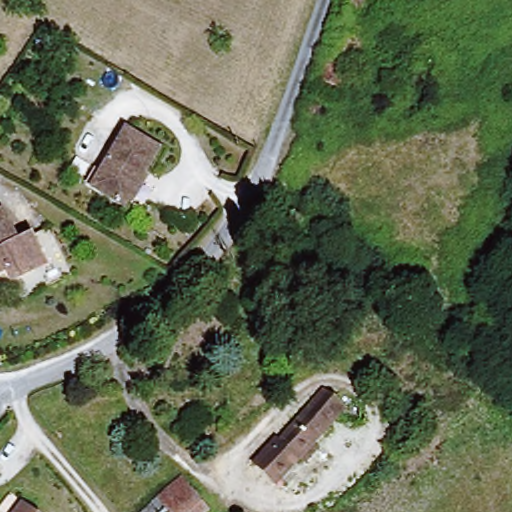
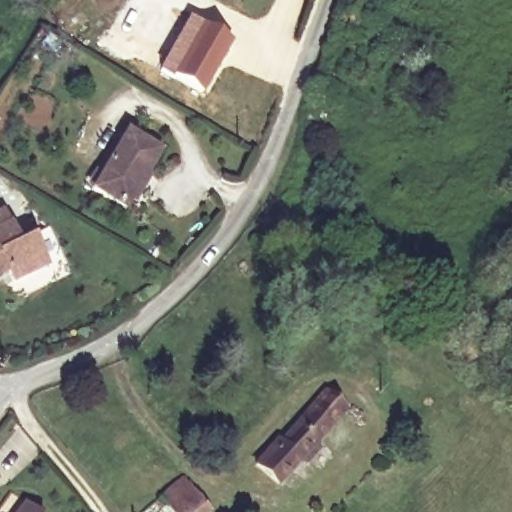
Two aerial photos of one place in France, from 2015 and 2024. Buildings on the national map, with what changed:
unchanged [(365,35),(338,25),(335,23),(344,0),(379,0),(365,35)]
new [(188,15),(232,40),(202,93),(158,69),(188,15)]
unchanged [(376,39),(366,66),(357,62),(343,103),(328,98),(323,112),(307,106),(338,25),(365,35),(376,39)]
unchanged [(165,147),(130,204),(99,186),(133,128),(165,147)]
unchanged [(41,272),(17,284),(12,275),(0,281),(0,212),(7,208),(14,221),(25,245),(39,238),(48,257),(52,266),(41,272)]
unchanged [(310,460),(305,455),(282,480),(260,459),(281,434),(284,436),(328,386),(350,406),(320,439),(325,444),(310,460)]
unchanged [(351,406),(355,401),(366,410),(362,416),(351,406)]
unchanged [(214,512),(174,512),(162,498),(185,478),(214,512)]
unchanged [(37,512),(15,512),(23,501),(37,512)]

